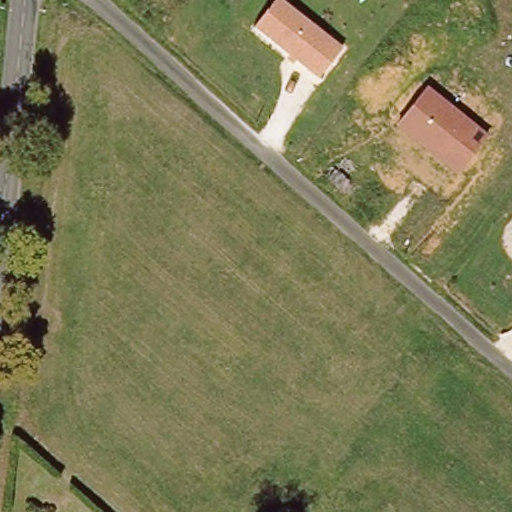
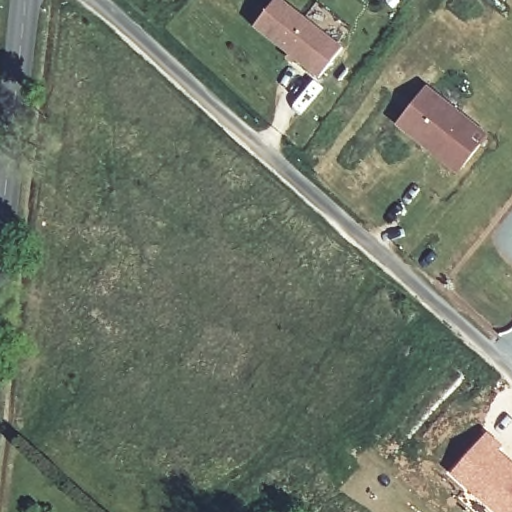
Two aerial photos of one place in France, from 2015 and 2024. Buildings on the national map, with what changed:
unchanged [(282,0),(344,47),(319,79),(254,29),(274,0),(282,0)]
unchanged [(430,85),(490,134),(457,176),(398,128),(430,85)]
new [(482,440),(485,435),(501,449),(497,452),(512,466),(512,512),(499,512),(454,472),(482,440)]

